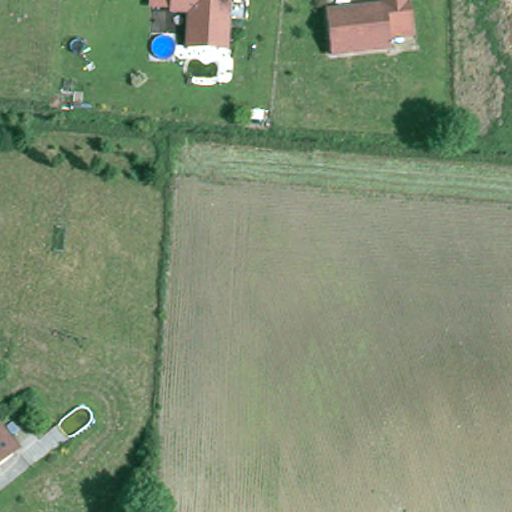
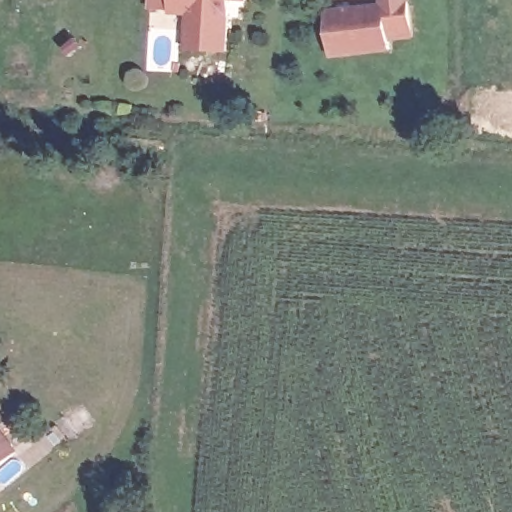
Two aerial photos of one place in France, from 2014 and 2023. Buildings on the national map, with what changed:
unchanged [(192,47),(194,11),(176,11),(176,0),(234,0),(232,49),(192,47)]
unchanged [(388,0),(412,0),(417,32),(394,34),(395,44),(337,52),(332,9),(375,4),(389,2),(388,0)]
unchanged [(0,466),(0,428),(18,452),(0,466)]

